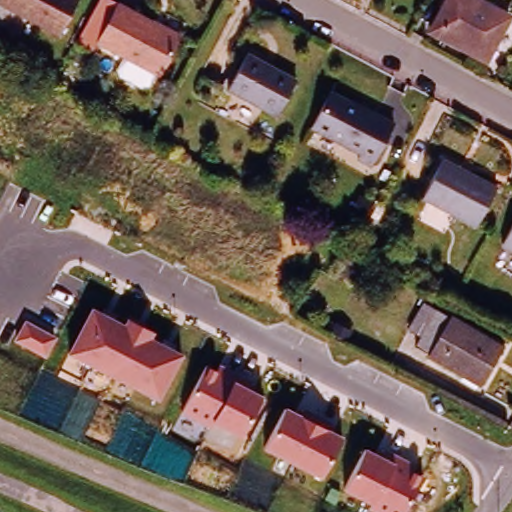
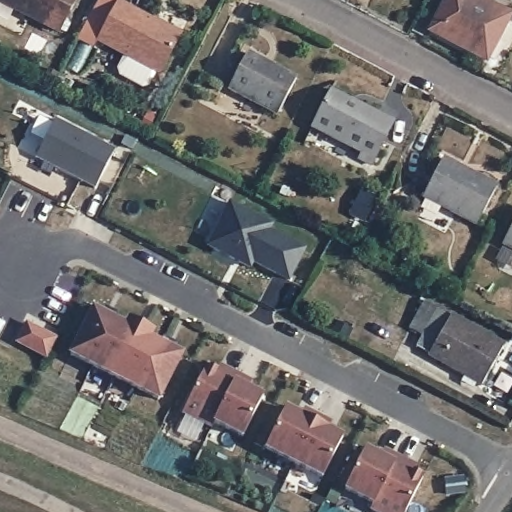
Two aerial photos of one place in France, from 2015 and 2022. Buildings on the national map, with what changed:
unchanged [(72,0),(55,31),(1,0),(72,0)]
unchanged [(98,0),(117,0),(95,38),(99,40),(92,50),(75,42),(98,0)]
unchanged [(140,84),(117,72),(115,66),(122,52),(95,38),(117,0),(157,22),(158,21),(177,32),(156,71),(153,69),(145,82),(140,84)]
unchanged [(429,33),(446,0),(473,0),(507,18),(487,56),(484,62),(471,55),(429,33)]
unchanged [(273,111),(226,85),(245,49),(292,75),(273,111)]
unchanged [(359,156),(362,150),(312,123),(332,87),(360,103),(360,102),(393,120),(373,157),(370,162),(359,156)]
new [(55,122),(114,153),(94,192),(55,172),(52,179),(42,174),(45,167),(35,161),(55,122)]
unchanged [(472,222),(419,192),(440,154),(492,182),(472,222)]
new [(229,207),(271,229),(268,235),(304,252),(289,283),(252,266),(250,271),(213,254),(210,245),(229,207)]
unchanged [(512,220),(512,250),(499,244),(512,220)]
unchanged [(480,385),(438,358),(415,346),(421,335),(409,328),(425,301),(504,348),(480,385)]
unchanged [(122,322),(127,316),(157,332),(154,338),(182,353),(159,398),(70,352),(92,306),(122,322)]
new [(27,326),(55,341),(45,358),(17,343),(27,326)]
unchanged [(240,438),(214,426),(212,429),(183,415),(207,366),(217,371),(220,364),(247,378),(242,386),(262,396),(240,438)]
unchanged [(343,437),(321,478),(263,451),(285,408),(343,437)]
unchanged [(365,448),(379,455),(384,448),(413,462),(410,468),(423,475),(405,512),(373,512),(369,510),(372,505),(344,490),(365,448)]

